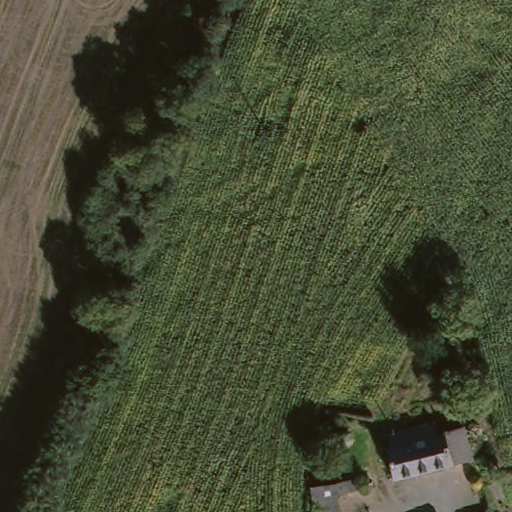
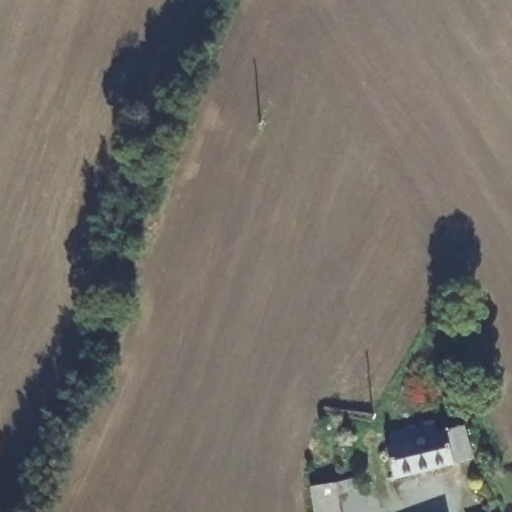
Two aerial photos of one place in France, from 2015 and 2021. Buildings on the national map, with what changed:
unchanged [(388,453),(395,451),(391,438),(433,426),(437,439),(463,432),(473,463),(395,484),(388,453)]
unchanged [(333,487),(333,491),(355,487),(357,501),(337,507),(338,512),(312,512),(308,491),(333,487)]

